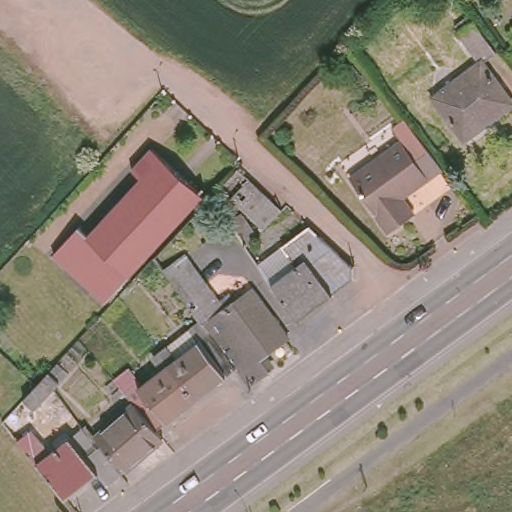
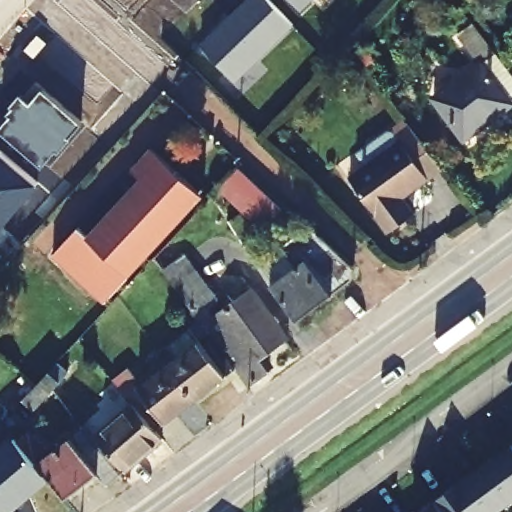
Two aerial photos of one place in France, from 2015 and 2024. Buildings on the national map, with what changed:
new [(245,0),(271,0),(294,25),(236,82),(201,43),(245,0)]
new [(312,0),(302,10),(290,0),(312,0)]
unchanged [(465,27),(488,57),(472,69),(450,38),(465,27)]
unchanged [(489,121),(456,144),(426,104),(472,69),(500,106),(486,116),(489,121)]
new [(0,128),(11,116),(9,113),(15,107),(12,105),(22,94),(31,102),(43,89),(81,123),(69,137),(71,139),(60,152),(57,149),(43,166),(0,128)]
unchanged [(394,142),(386,132),(400,121),(406,128),(437,166),(422,180),(411,189),(409,186),(405,189),(398,195),(413,214),(409,217),(388,234),(345,182),(390,145),(392,143),(394,142)]
new [(0,224),(0,150),(39,185),(3,227),(0,224)]
unchanged [(52,256),(78,227),(87,235),(137,179),(129,170),(148,150),(200,199),(105,303),(52,256)]
unchanged [(262,227),(249,216),(241,209),(239,207),(227,196),(217,187),(237,166),(247,175),(259,185),(270,195),(282,206),(262,227)]
unchanged [(233,217),(236,221),(240,218),(253,237),(242,244),(226,222),(233,217)]
unchanged [(350,267),(349,280),(297,320),(294,322),(266,285),(254,267),(256,265),(278,250),(308,227),(350,267)]
unchanged [(217,303),(226,297),(231,304),(248,292),(284,340),(258,358),(267,371),(245,386),(231,367),(205,331),(196,318),(164,274),(184,258),(217,303)]
unchanged [(195,396),(168,361),(158,349),(165,344),(168,347),(170,346),(167,342),(196,318),(205,331),(231,367),(195,396)]
unchanged [(157,369),(168,361),(195,396),(154,427),(137,408),(127,397),(120,402),(116,397),(123,392),(126,395),(157,369)]
unchanged [(154,427),(161,435),(117,472),(98,446),(101,443),(99,441),(137,408),(154,427)]
new [(14,435),(36,463),(49,480),(11,512),(0,512),(0,446),(14,435)]
unchanged [(105,482),(96,472),(64,497),(36,463),(69,437),(85,456),(98,446),(117,472),(105,482)]
new [(512,443),(512,501),(496,512),(419,512),(512,443)]

